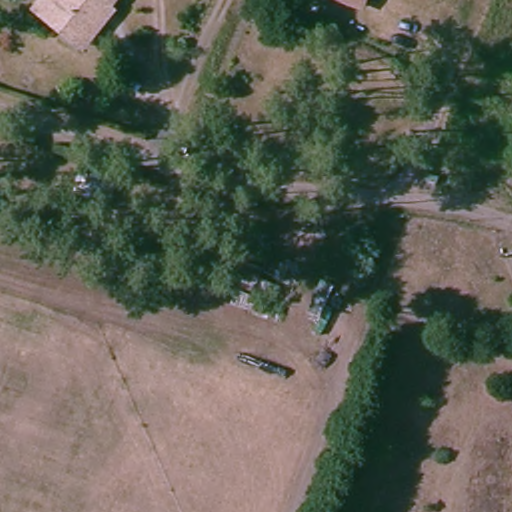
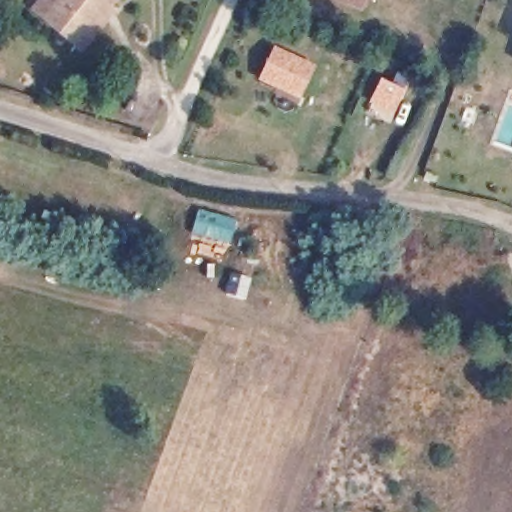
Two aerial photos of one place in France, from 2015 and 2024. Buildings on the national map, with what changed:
unchanged [(59,34),(31,12),(41,0),(119,0),(89,39),(80,50),(59,34)]
unchanged [(352,0),(364,0),(363,4),(352,0)]
new [(258,79),(276,44),(317,64),(300,99),(258,79)]

